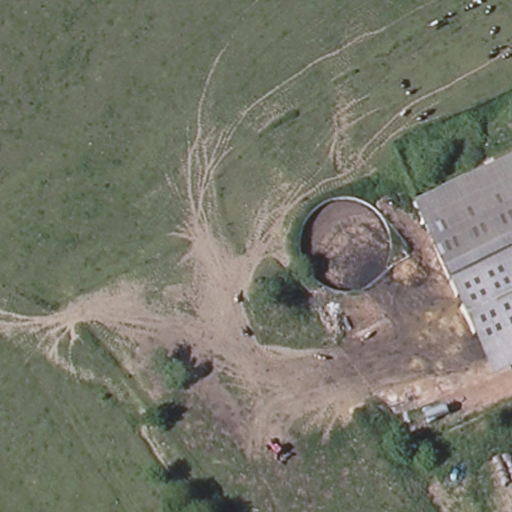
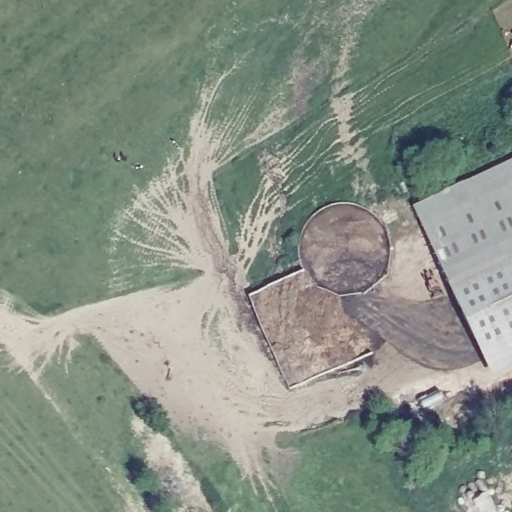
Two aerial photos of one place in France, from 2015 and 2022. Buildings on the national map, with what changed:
unchanged [(479,355),(410,202),(512,157),(512,339),(479,355)]

